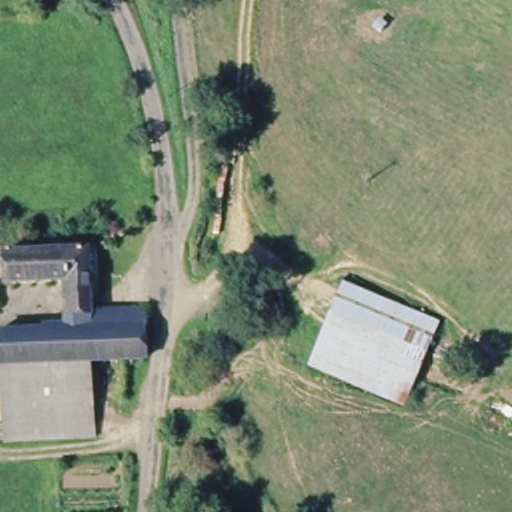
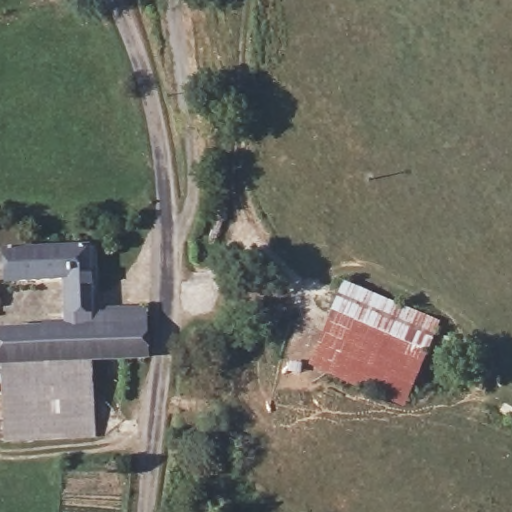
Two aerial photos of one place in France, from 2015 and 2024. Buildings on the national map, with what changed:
unchanged [(14,250),(96,246),(100,318),(144,317),(144,329),(77,330),(76,283),(16,289),(14,250)]
unchanged [(346,285),(440,323),(407,402),(313,364),(346,285)]
unchanged [(77,330),(144,329),(142,353),(89,355),(0,359),(0,330),(77,330)]
unchanged [(89,355),(94,426),(16,431),(3,431),(0,359),(89,355)]

